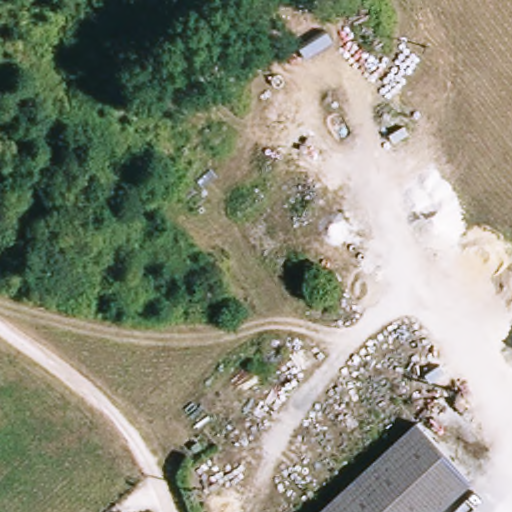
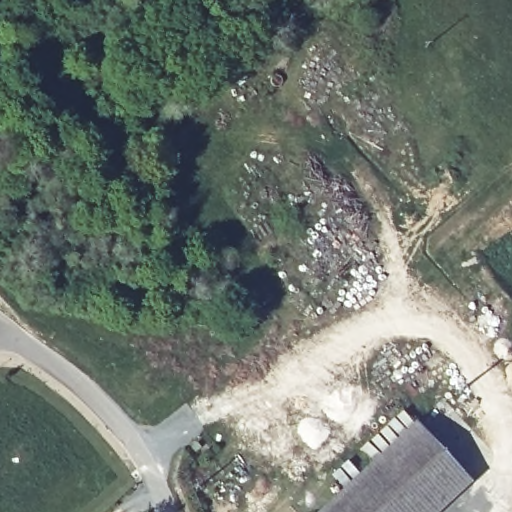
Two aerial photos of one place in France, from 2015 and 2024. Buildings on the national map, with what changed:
unchanged [(479,483),(445,512),(324,512),(429,425),(479,483)]

